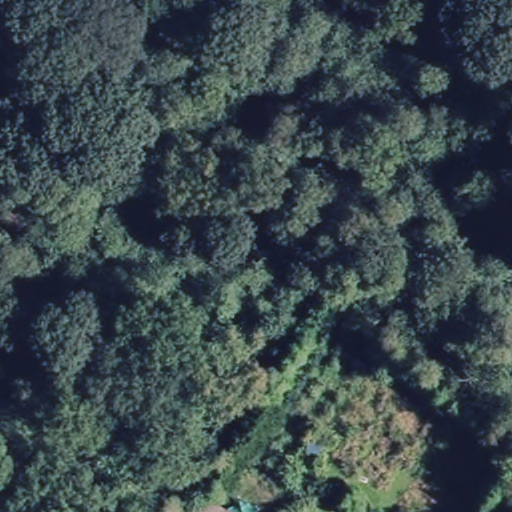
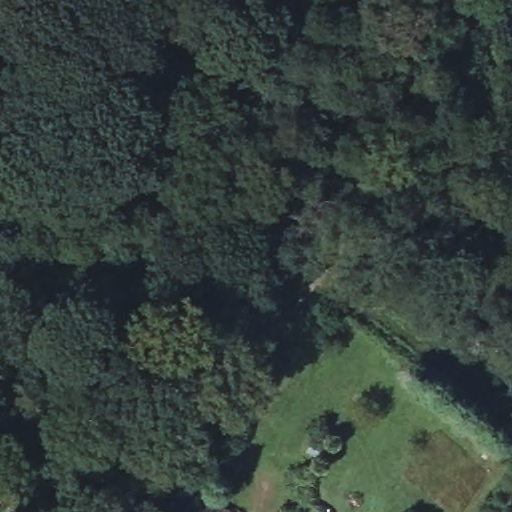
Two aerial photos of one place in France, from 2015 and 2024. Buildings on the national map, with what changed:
unchanged [(232,512),(203,512),(210,500),(232,512)]

